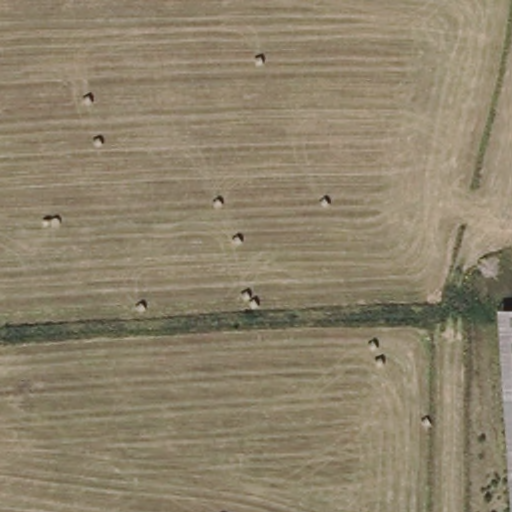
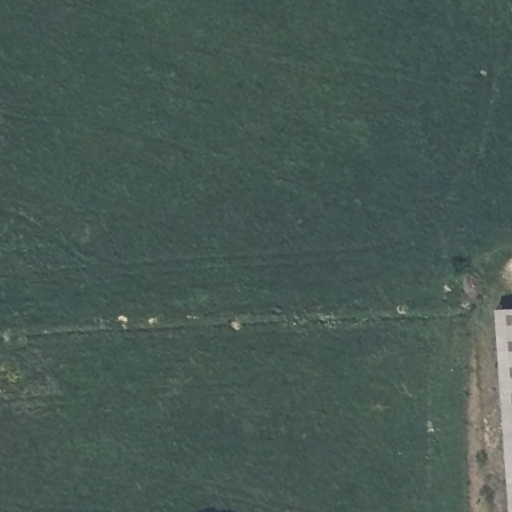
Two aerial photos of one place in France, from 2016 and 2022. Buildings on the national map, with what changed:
unchanged [(512,512),(511,512),(497,307),(512,307),(512,512)]

